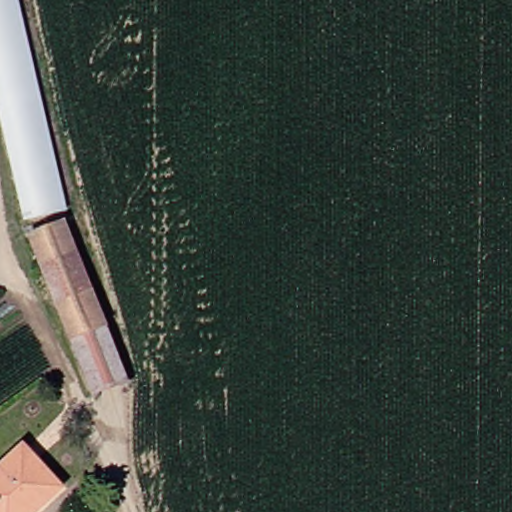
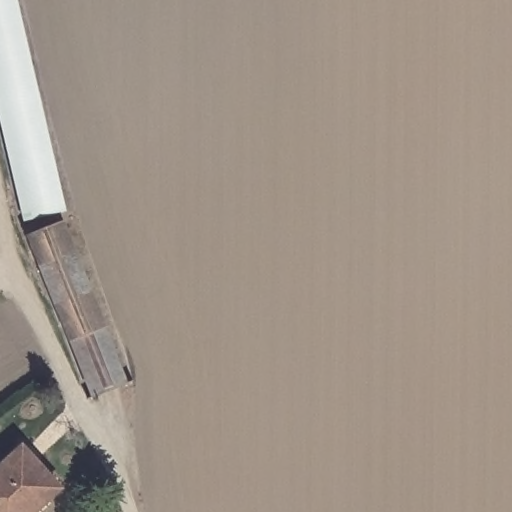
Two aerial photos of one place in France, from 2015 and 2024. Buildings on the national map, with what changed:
unchanged [(0,114),(0,0),(19,0),(68,210),(24,219),(0,114)]
unchanged [(94,395),(28,232),(65,219),(129,381),(94,395)]
unchanged [(0,512),(0,465),(24,443),(63,483),(32,512),(0,512)]

